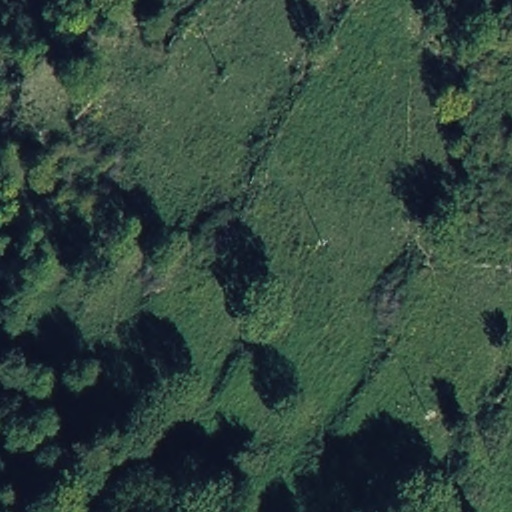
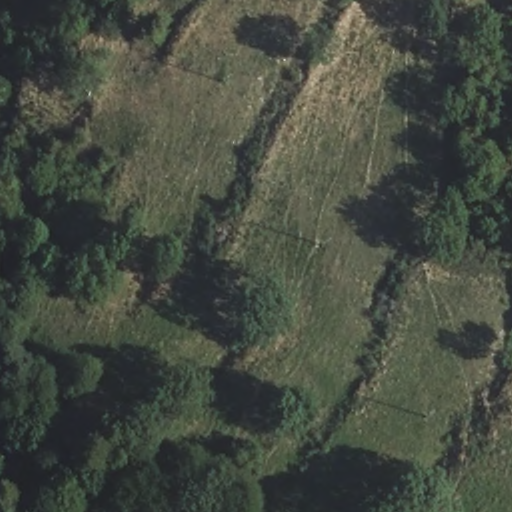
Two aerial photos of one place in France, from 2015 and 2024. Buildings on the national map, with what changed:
[]

